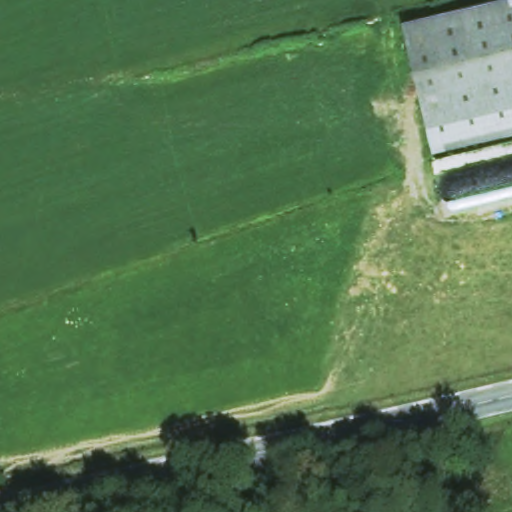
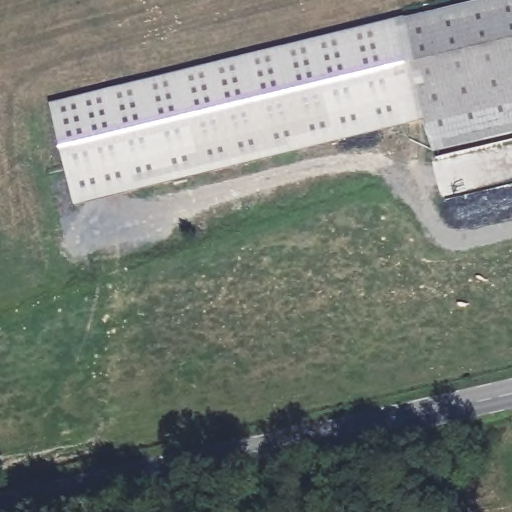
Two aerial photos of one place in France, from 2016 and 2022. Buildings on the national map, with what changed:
new [(433,151),(424,121),(76,207),(50,104),(405,18),(406,19),(485,0),(512,0),(512,133),(433,151)]
demolished [(474,0),(512,0),(512,107),(421,131),(389,17),(474,0)]
demolished [(431,156),(421,131),(512,107),(512,137),(431,156)]

